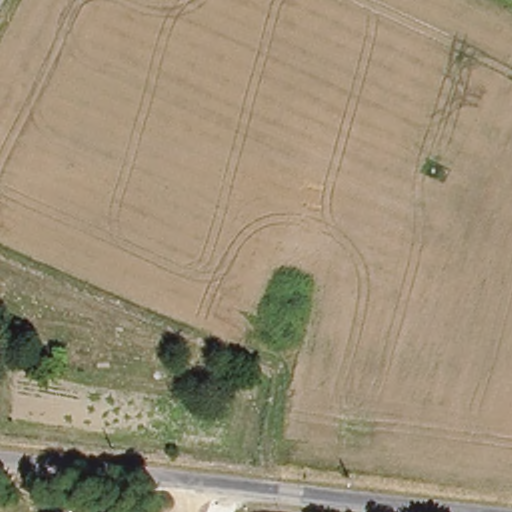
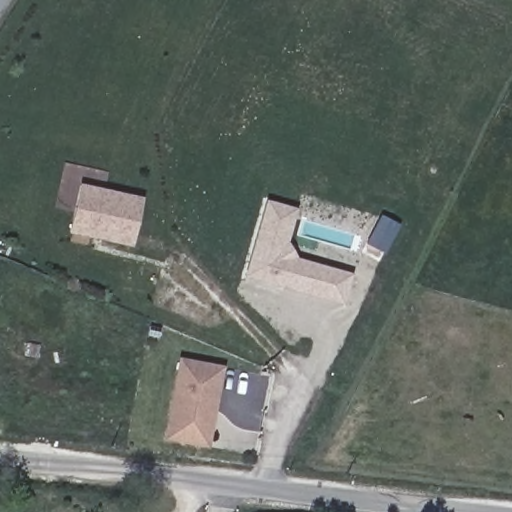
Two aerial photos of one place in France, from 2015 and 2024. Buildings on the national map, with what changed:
new [(142,197),(132,248),(68,234),(79,184),(142,197)]
new [(269,204),(297,212),(287,247),(295,260),(352,278),(344,305),(248,277),(269,204)]
new [(162,441),(177,358),(224,367),(209,448),(162,441)]

